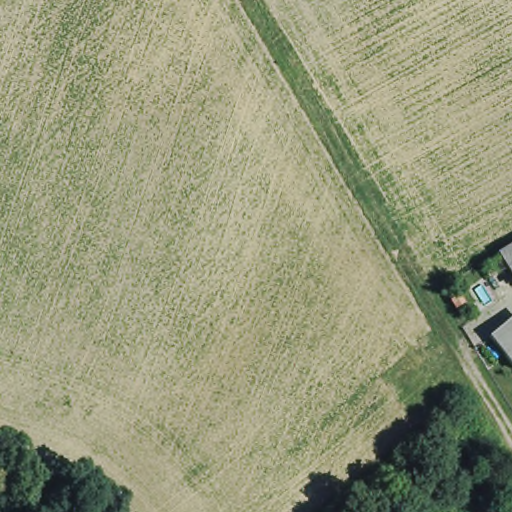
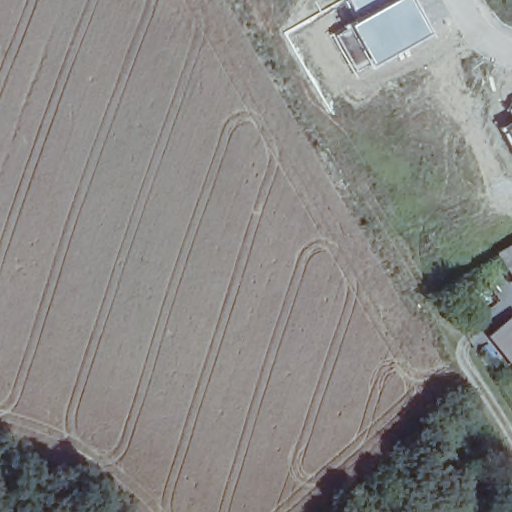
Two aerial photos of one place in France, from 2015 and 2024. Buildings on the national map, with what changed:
new [(379,4),(386,0),(410,0),(429,31),(371,66),(346,24),(357,17),(379,4)]
new [(347,0),(375,0),(354,12),(347,0)]
new [(376,0),(386,0),(379,4),(376,0)]
new [(512,103),(512,115),(507,106),(512,103)]
new [(512,149),(501,129),(512,123),(512,149)]
unchanged [(512,245),(512,264),(504,250),(512,245)]
unchanged [(512,346),(512,360),(506,351),(512,346)]

